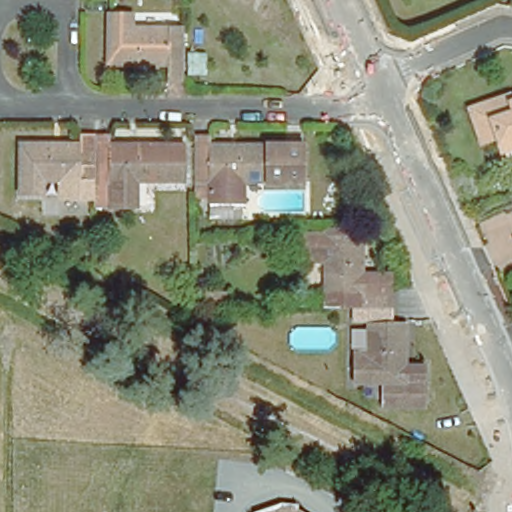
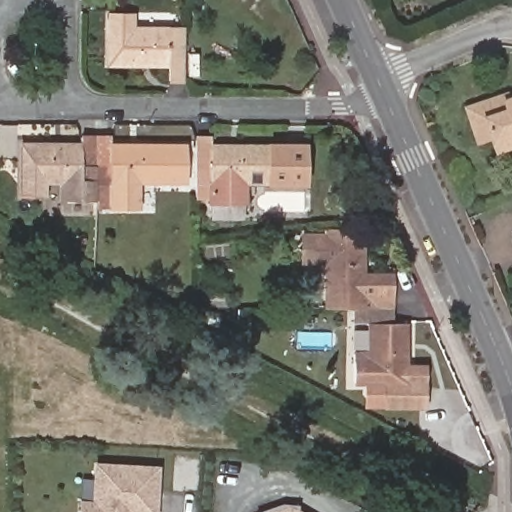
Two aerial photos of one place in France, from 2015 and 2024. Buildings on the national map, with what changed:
unchanged [(103,14),(131,14),(131,27),(180,27),(180,77),(165,77),(165,67),(104,66),(103,14)]
unchanged [(498,140),(483,146),(475,125),(470,111),(481,107),(509,97),(511,104),(512,104),(512,151),(502,154),(498,140)]
unchanged [(95,176),(81,176),(80,184),(47,184),(46,194),(19,194),(20,143),(80,143),(80,136),(111,136),(111,143),(185,143),(185,184),(142,184),(142,209),(95,210),(95,176)]
unchanged [(210,231),(210,218),(210,199),(195,199),(195,137),(211,137),(211,144),(304,144),(305,186),(245,185),(245,204),(242,204),(241,218),(241,231),(210,231)]
unchanged [(325,262),(301,262),(301,237),(325,237),(363,236),(363,275),(393,275),(393,324),(406,324),(407,366),(425,365),(425,409),(382,409),(382,385),(353,385),(353,358),(367,358),(366,323),(353,323),(353,307),(324,307),(325,262)]
unchanged [(512,240),(512,241),(511,240),(512,240)]
unchanged [(226,306),(205,305),(206,292),(226,293),(226,306)]
new [(90,499),(92,461),(159,464),(156,512),(78,512),(79,499),(90,499)]

